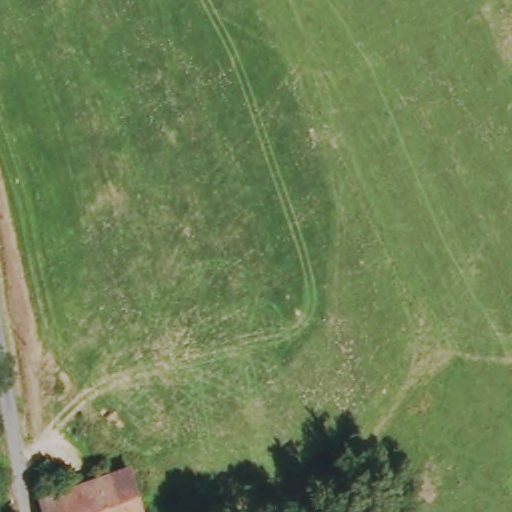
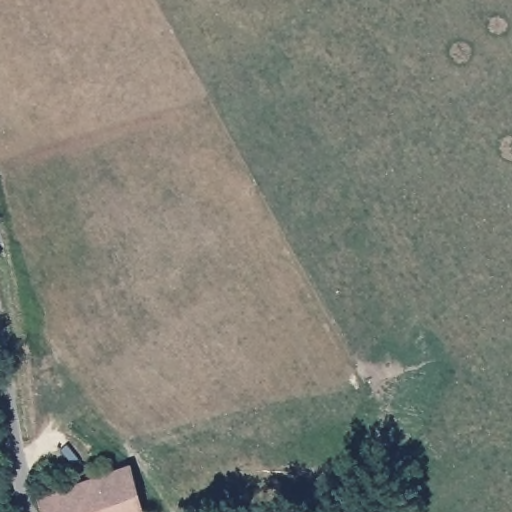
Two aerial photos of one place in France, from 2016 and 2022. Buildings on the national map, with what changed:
unchanged [(45,503),(134,472),(144,512),(47,512),(45,503)]

